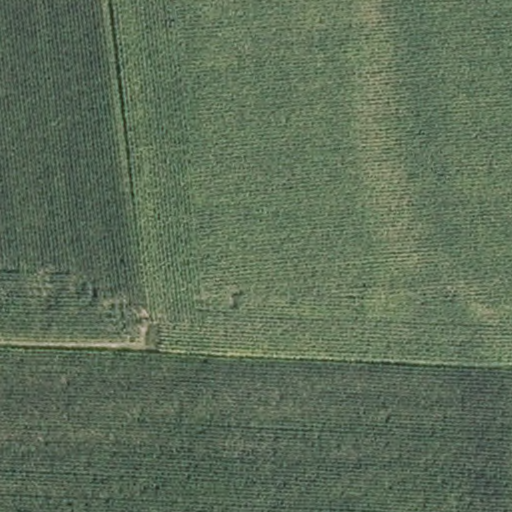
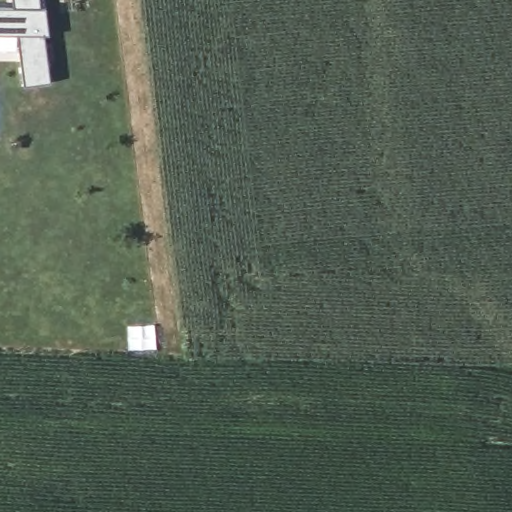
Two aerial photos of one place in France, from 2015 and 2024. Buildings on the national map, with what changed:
new [(16,8),(14,0),(38,0),(40,9),(45,9),(47,34),(43,34),(50,81),(25,85),(21,50),(0,50),(0,8),(16,8)]

